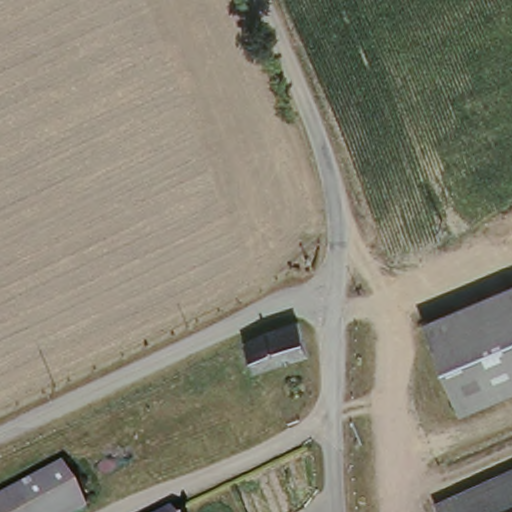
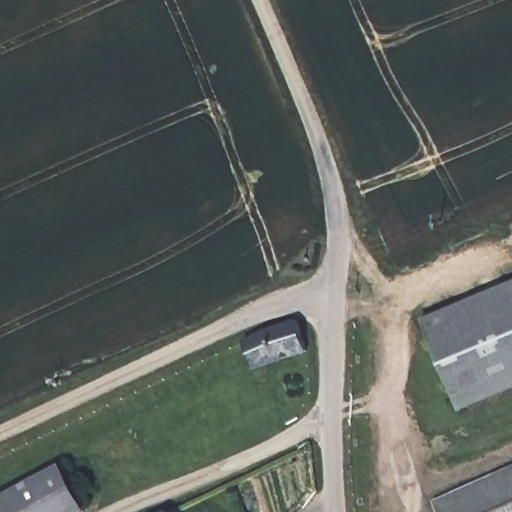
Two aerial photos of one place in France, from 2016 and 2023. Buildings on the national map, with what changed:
unchanged [(462,412),(424,321),(512,285),(512,390),(462,412)]
unchanged [(304,323),(312,351),(281,363),(259,369),(251,343),(272,333),(304,323)]
unchanged [(0,498),(59,467),(82,512),(0,512),(0,498)]
unchanged [(433,503),(512,468),(512,512),(437,512),(433,503)]

